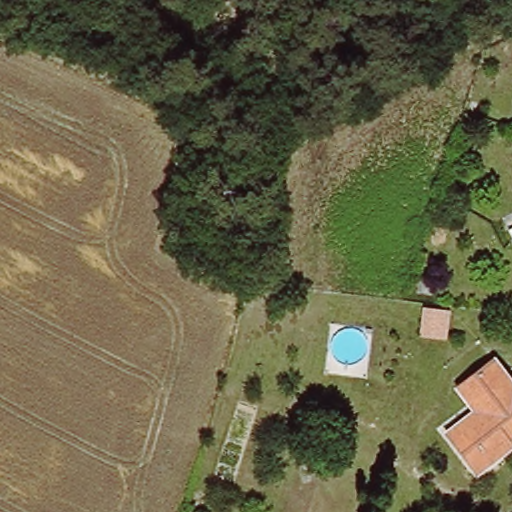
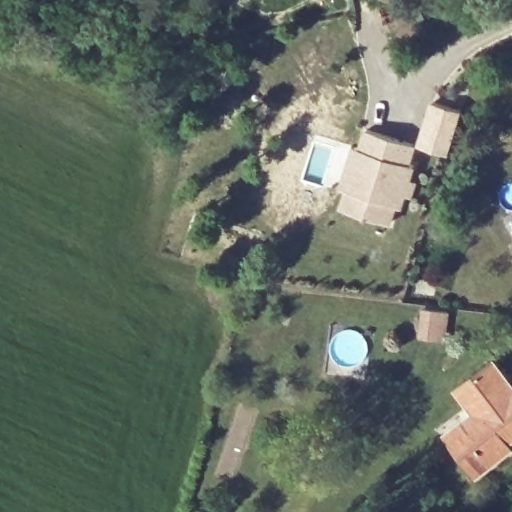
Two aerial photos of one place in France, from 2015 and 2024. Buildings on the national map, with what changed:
new [(413,195),(406,193),(401,208),(396,206),(390,224),(343,209),(348,191),(342,189),(355,149),(362,150),(368,131),(415,146),(409,166),(414,167),(410,182),(416,184),(413,195)]
unchanged [(512,248),(512,250),(511,248),(512,248)]
new [(445,336),(439,336),(420,334),(422,307),(441,308),(446,309),(445,336)]
unchanged [(512,385),(512,431),(503,438),(508,446),(475,470),(453,438),(478,419),(455,391),(495,361),(512,385)]

